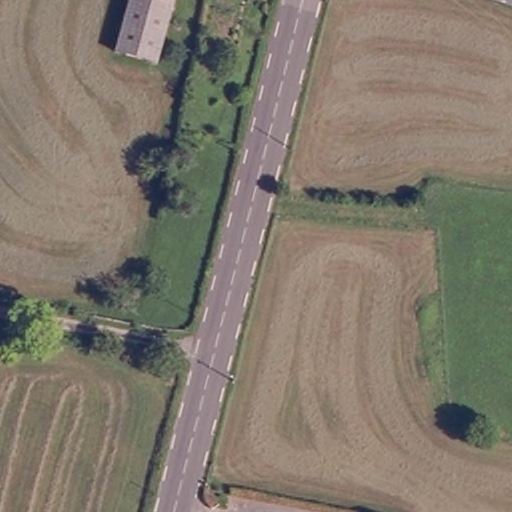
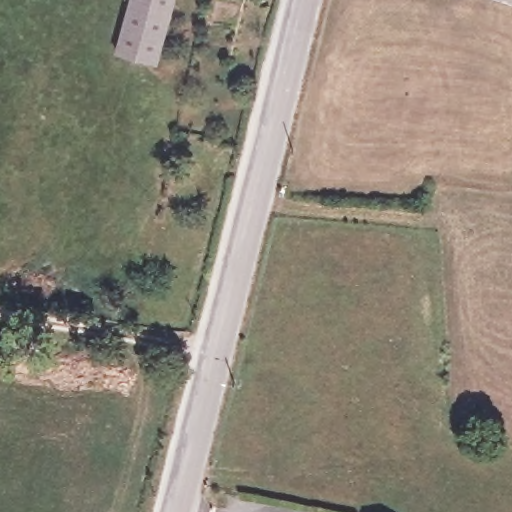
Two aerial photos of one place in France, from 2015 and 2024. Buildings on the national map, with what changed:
unchanged [(122,57),(136,0),(172,0),(158,67),(122,57)]

